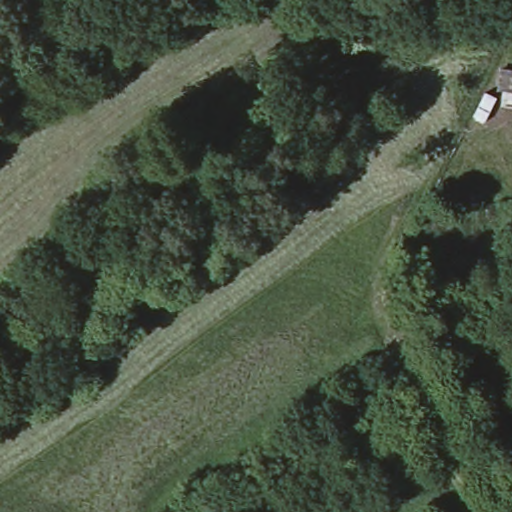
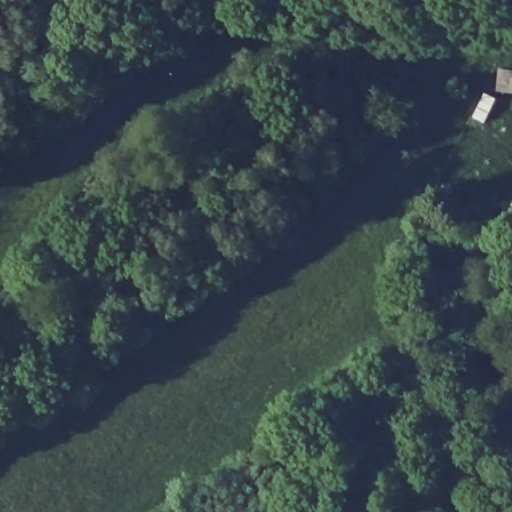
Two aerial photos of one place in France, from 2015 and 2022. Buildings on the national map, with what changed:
unchanged [(480,97),(493,96),(500,66),(512,67),(512,113),(479,113),(480,97)]

